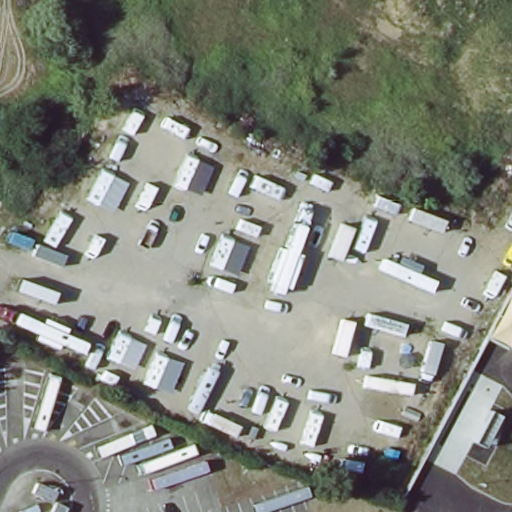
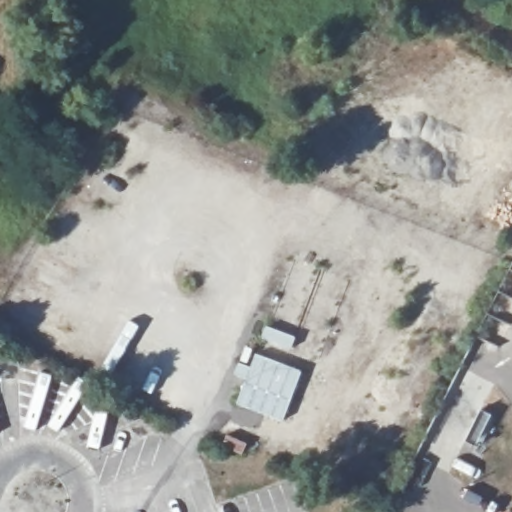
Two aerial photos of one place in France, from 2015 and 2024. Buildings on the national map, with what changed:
new [(239,361),(250,365),(254,352),(301,370),(282,421),(234,405),(243,379),(233,375),(239,361)]

